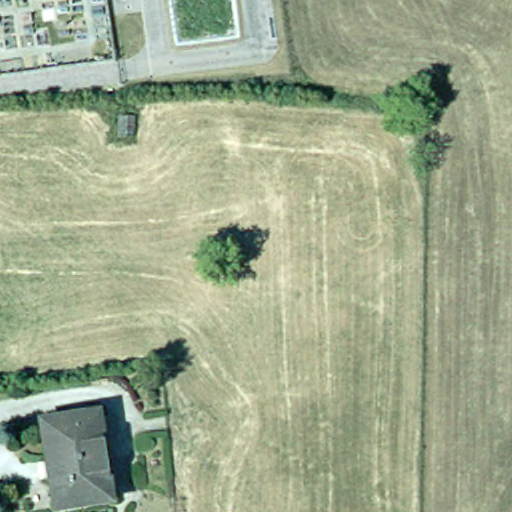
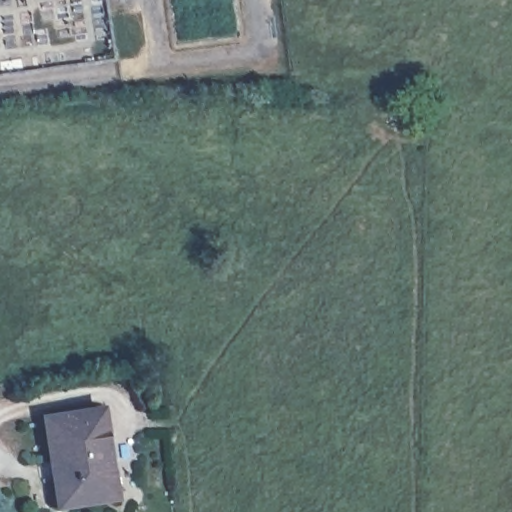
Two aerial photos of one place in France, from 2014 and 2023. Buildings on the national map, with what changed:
unchanged [(97,405),(111,493),(56,501),(43,412),(97,405)]

